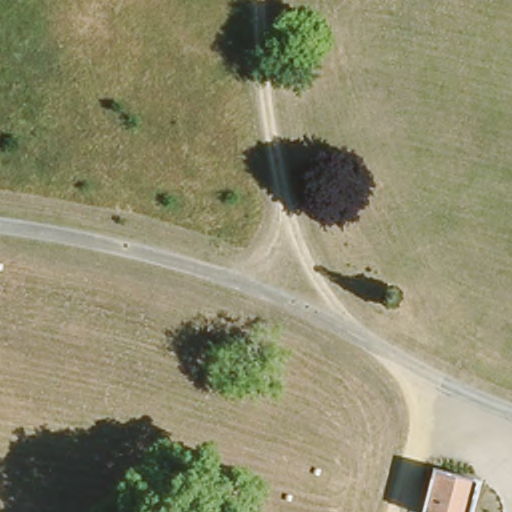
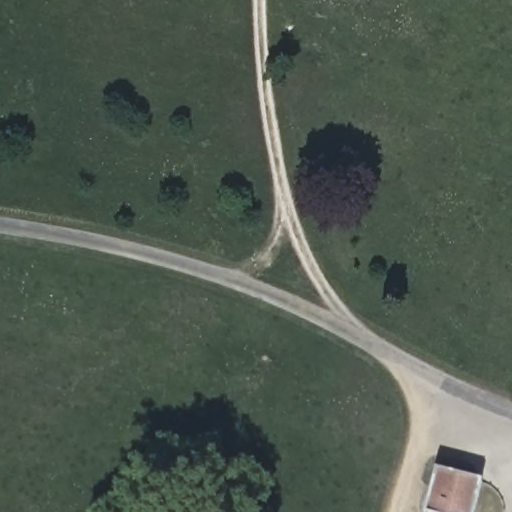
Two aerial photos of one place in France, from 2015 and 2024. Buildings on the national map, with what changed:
unchanged [(425,512),(436,467),(481,478),(472,512),(425,512)]

